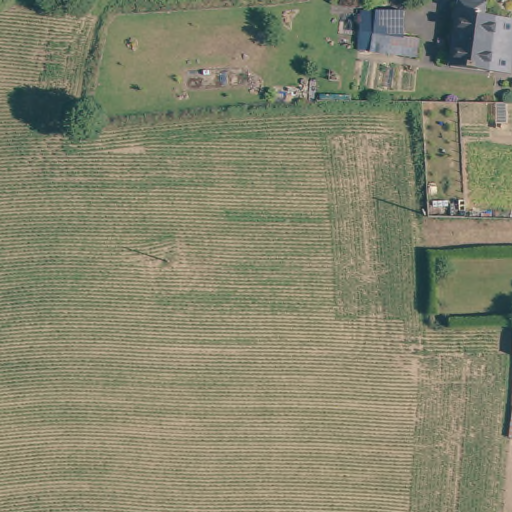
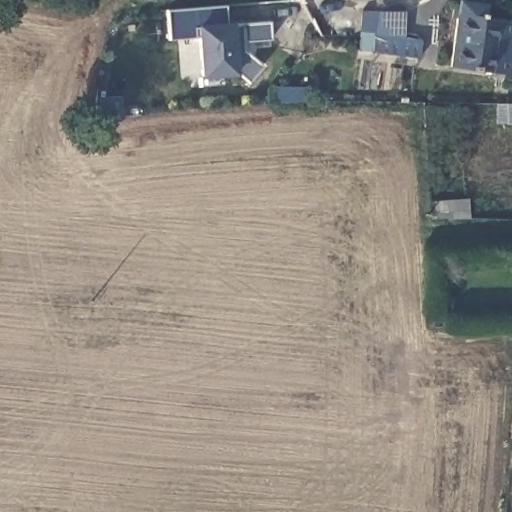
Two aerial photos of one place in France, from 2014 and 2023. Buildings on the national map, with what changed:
new [(196,39),(170,40),(167,11),(224,6),(226,21),(233,21),(234,24),(243,23),(245,53),(261,66),(247,83),(236,74),(200,77),(196,39)]
unchanged [(463,12),(512,18),(512,69),(458,65),(463,12)]
unchanged [(397,40),(412,41),(412,61),(363,58),(367,15),(396,16),(397,40)]

